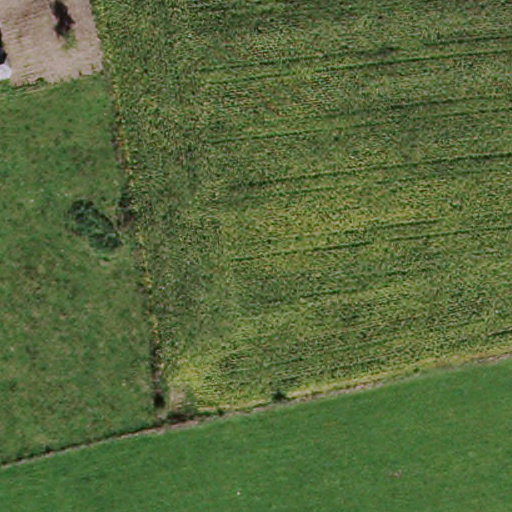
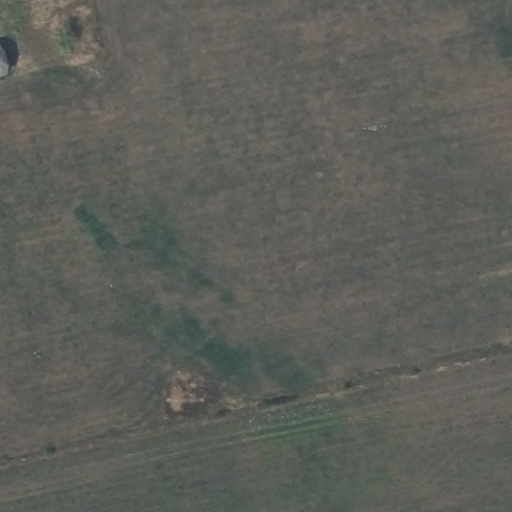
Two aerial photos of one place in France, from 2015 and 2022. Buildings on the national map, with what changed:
unchanged [(0,49),(6,71),(0,73),(0,49)]

